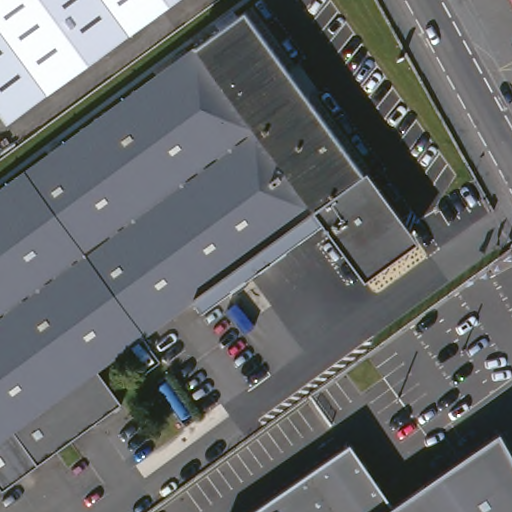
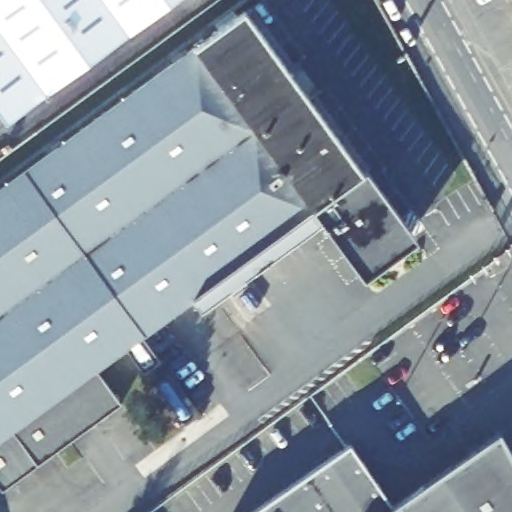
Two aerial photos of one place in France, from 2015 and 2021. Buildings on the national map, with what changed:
unchanged [(0,104),(0,0),(182,0),(13,122),(0,104)]
unchanged [(254,11),(373,175),(376,172),(421,235),(367,273),(322,212),(253,262),(261,274),(207,314),(198,302),(101,372),(126,407),(42,468),(17,434),(0,447),(0,196),(254,11)]
unchanged [(390,508),(499,432),(512,456),(512,512),(254,512),(349,447),(390,508)]

